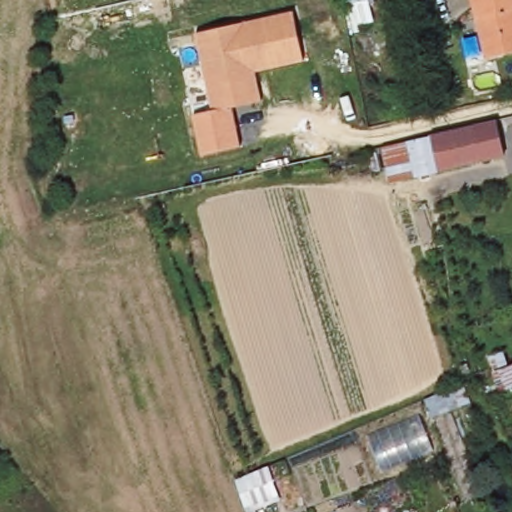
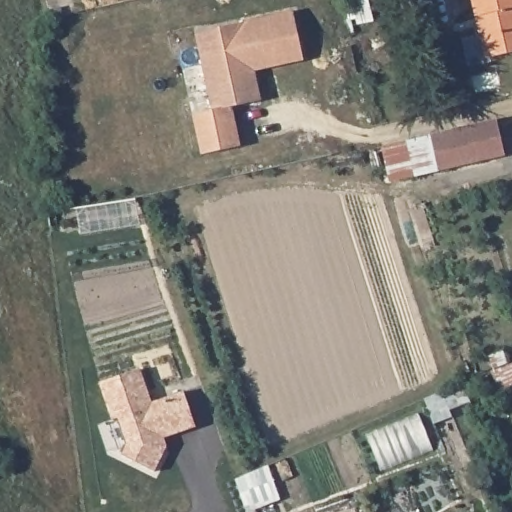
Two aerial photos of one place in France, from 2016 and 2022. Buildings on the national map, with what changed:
unchanged [(346,0),(370,0),(347,4),(346,0)]
unchanged [(477,0),(512,0),(512,55),(491,59),(477,0)]
unchanged [(294,12),(306,63),(261,75),(266,103),(237,109),(245,148),(203,156),(195,115),(214,111),(197,34),(294,12)]
unchanged [(502,121),(509,155),(437,172),(429,138),(502,121)]
unchanged [(429,138),(437,172),(395,182),(387,148),(429,138)]
unchanged [(512,387),(499,392),(492,372),(512,364),(512,387)]
new [(152,403),(185,391),(197,426),(165,438),(168,448),(154,472),(122,456),(127,444),(119,419),(113,421),(100,384),(141,369),(152,403)]
new [(280,498),(257,507),(258,512),(247,512),(236,479),(269,465),(280,498)]

